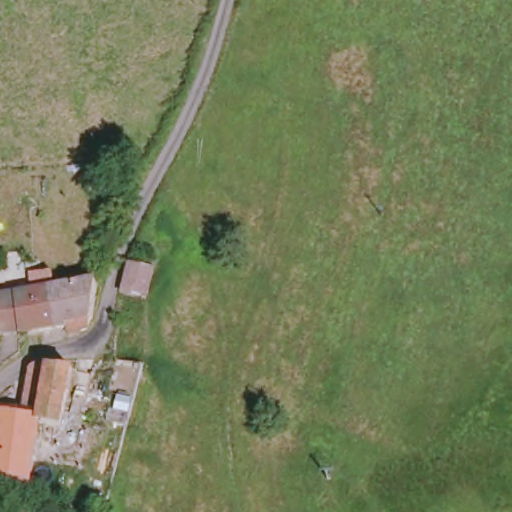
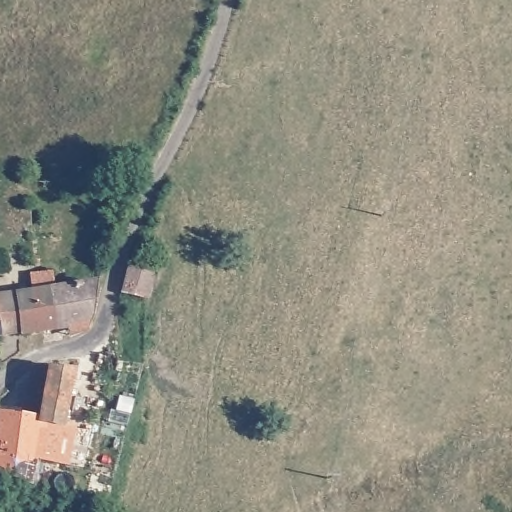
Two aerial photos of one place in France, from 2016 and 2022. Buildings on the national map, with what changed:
unchanged [(150,258),(144,299),(118,292),(117,286),(132,253),(150,258)]
unchanged [(15,289),(27,288),(26,278),(43,275),(45,284),(85,282),(92,281),(94,315),(85,316),(67,318),(67,325),(19,332),(15,289)]
unchanged [(0,334),(0,292),(15,289),(19,332),(10,332),(0,334)]
unchanged [(39,417),(48,368),(76,374),(65,431),(43,426),(34,488),(0,477),(0,412),(39,417)]

